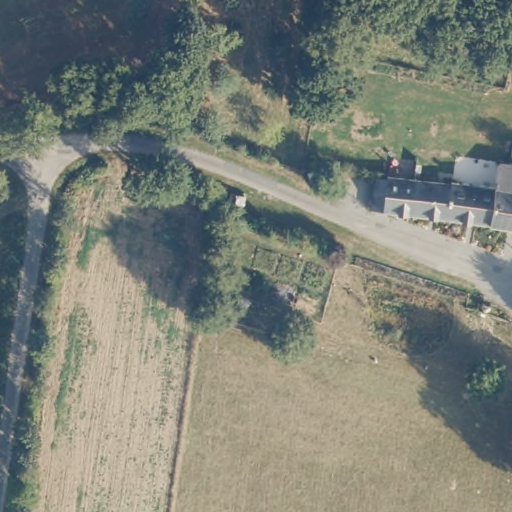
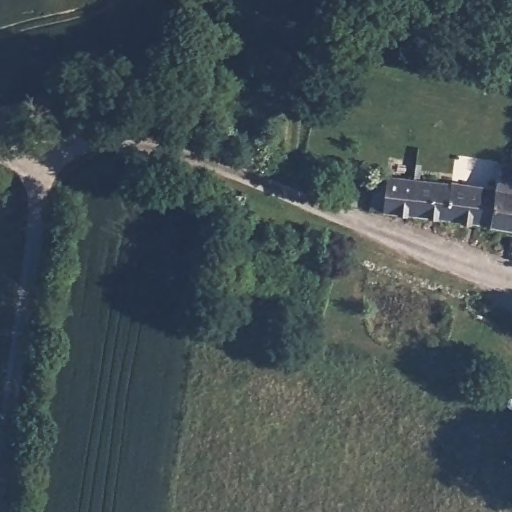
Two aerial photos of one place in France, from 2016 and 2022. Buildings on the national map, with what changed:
unchanged [(458,183),(459,180),(492,185),(495,155),(502,155),(496,177),(491,224),(477,222),(451,219),(458,183)]
unchanged [(496,177),(502,155),(512,156),(512,227),(491,224),(496,177)]
unchanged [(371,178),(385,178),(386,172),(459,180),(458,183),(451,219),(392,211),(369,211),(371,178)]

